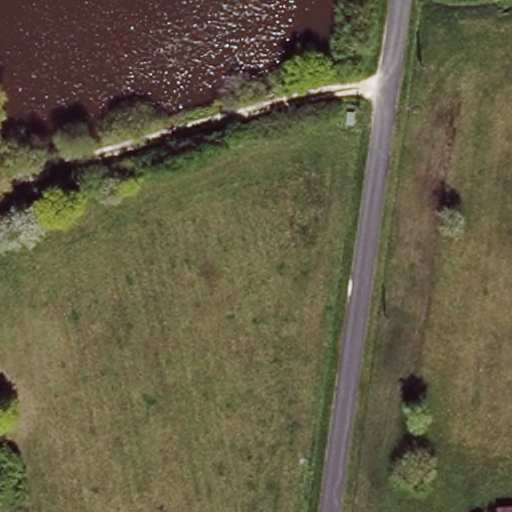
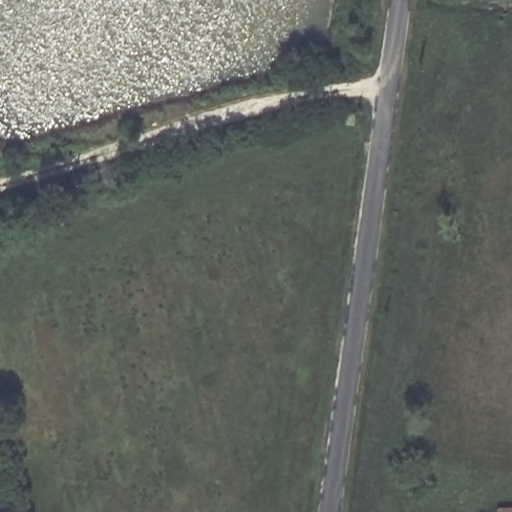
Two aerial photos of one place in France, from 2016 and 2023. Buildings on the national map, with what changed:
unchanged [(486,512),(487,503),(501,504),(512,504),(512,512),(486,512)]

